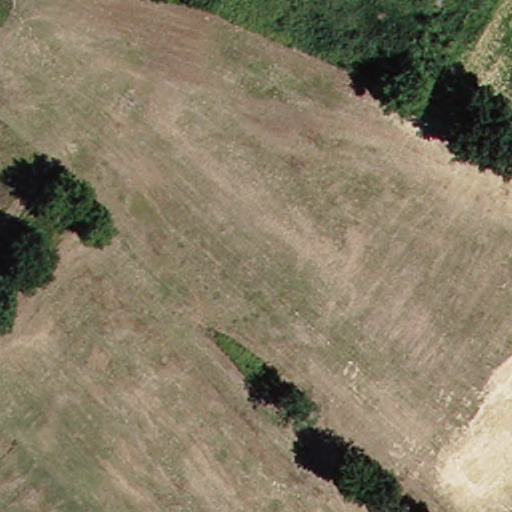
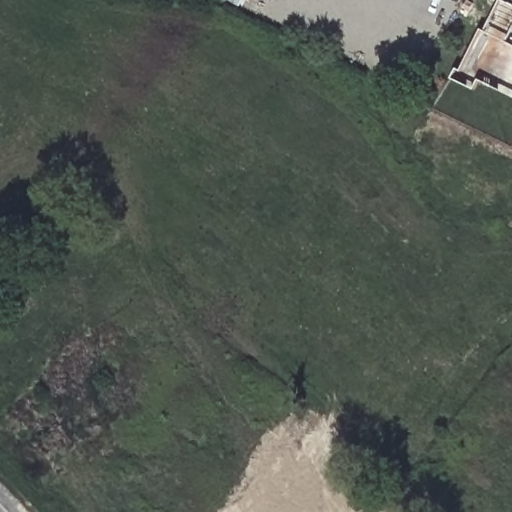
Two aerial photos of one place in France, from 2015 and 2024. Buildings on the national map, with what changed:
new [(457,69),(461,71),(481,29),(486,31),(500,0),(501,0),(512,6),(512,32),(507,42),(512,45),(512,97),(479,80),(474,90),(452,78),(457,69)]

